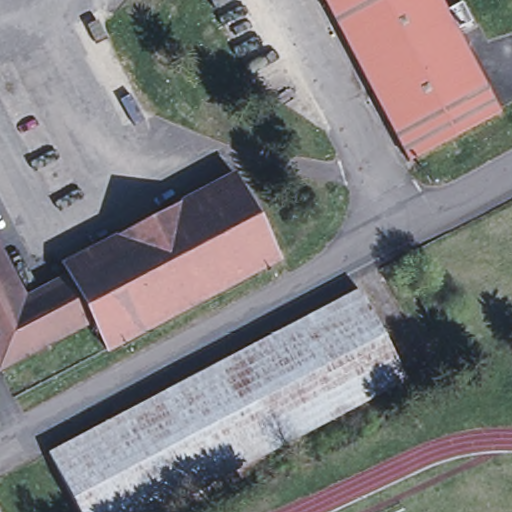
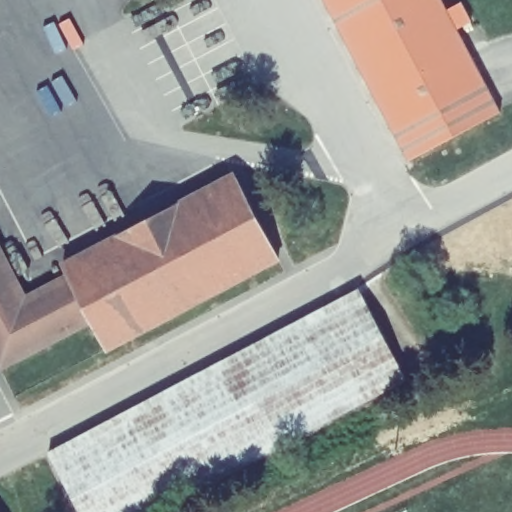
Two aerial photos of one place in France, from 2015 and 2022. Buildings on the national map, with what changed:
unchanged [(447,11),(463,3),(472,22),(472,23),(474,27),(467,30),(465,27),(457,31),(501,113),(409,160),(324,0),(441,0),(447,11)]
unchanged [(69,277),(63,265),(233,177),(277,262),(107,352),(91,322),(1,369),(0,369),(0,251),(26,300),(69,277)]
unchanged [(159,512),(79,512),(47,452),(358,288),(407,382),(159,512)]

